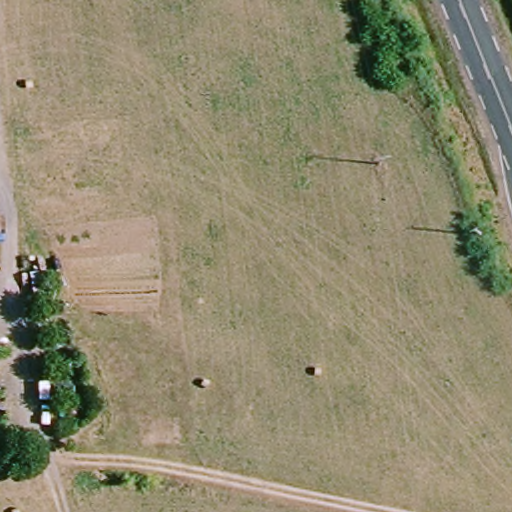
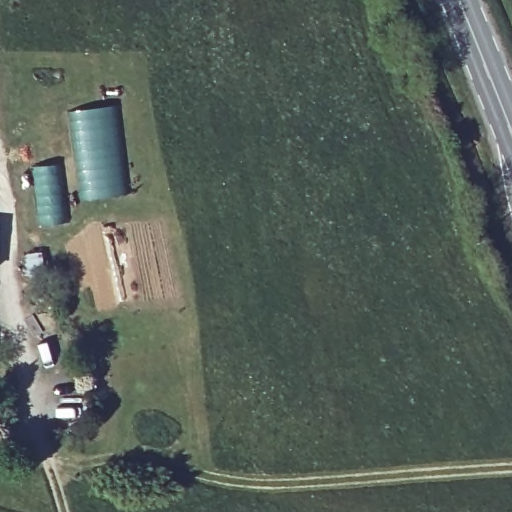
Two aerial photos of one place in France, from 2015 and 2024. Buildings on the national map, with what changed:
new [(116,103),(124,159),(127,194),(79,201),(67,110),(116,103)]
new [(60,162),(68,221),(38,225),(31,166),(60,162)]

